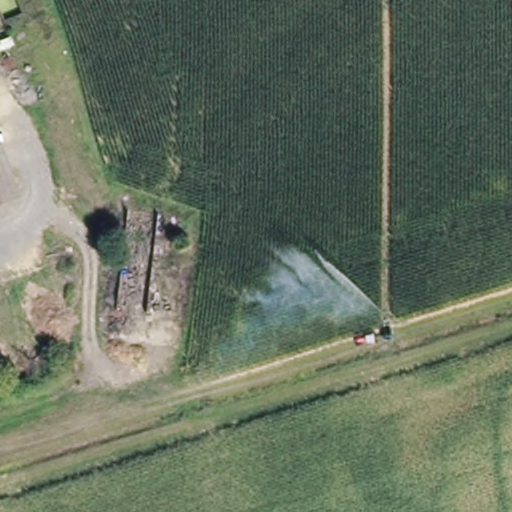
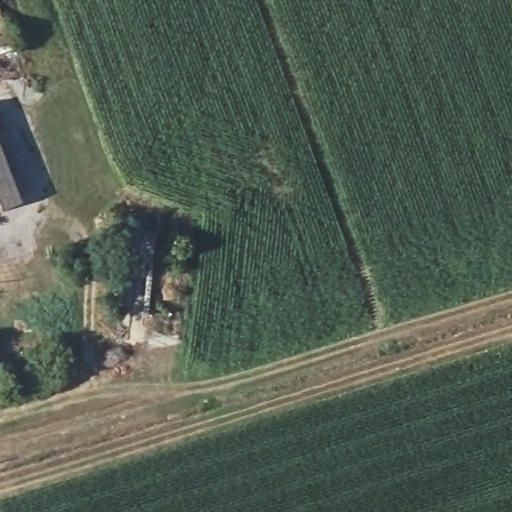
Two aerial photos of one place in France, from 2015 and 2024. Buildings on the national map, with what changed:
unchanged [(14,198),(0,202),(0,153),(14,198)]

